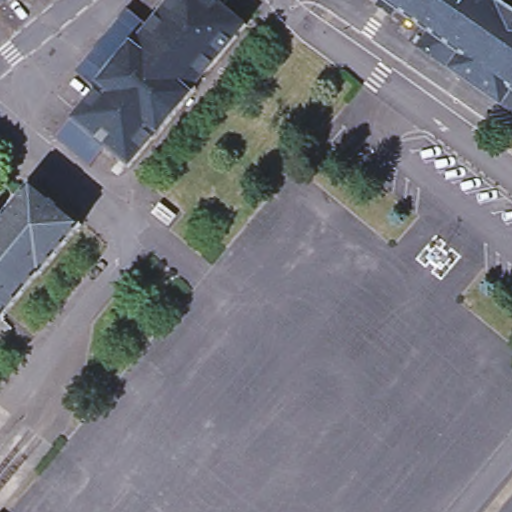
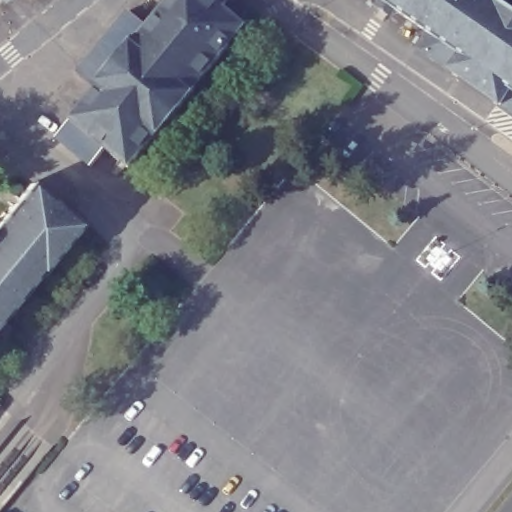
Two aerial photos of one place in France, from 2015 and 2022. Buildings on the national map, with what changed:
unchanged [(95,90),(93,88),(135,38),(137,40),(169,0),(215,0),(246,26),(195,88),(196,89),(155,140),(153,139),(128,168),(70,120),(95,90)]
unchanged [(455,71),(422,48),(432,33),(400,10),(397,14),(385,5),(387,1),(384,0),(497,0),(502,4),(503,2),(512,8),(512,110),(507,106),(455,71)]
unchanged [(40,281),(38,280),(0,326),(0,226),(30,189),(80,231),(40,281)]

